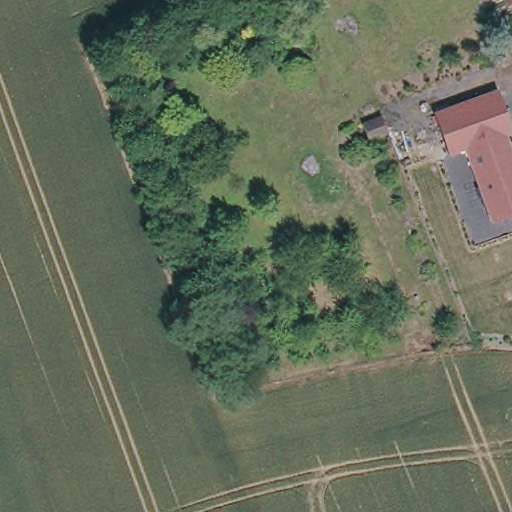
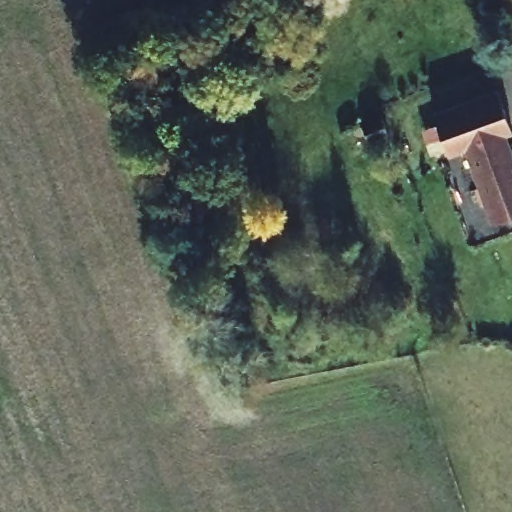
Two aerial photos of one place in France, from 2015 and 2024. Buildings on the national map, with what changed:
unchanged [(512,131),(512,137),(506,139),(512,157),(512,221),(495,227),(468,153),(450,160),(436,120),(499,97),(512,131)]
unchanged [(369,154),(361,137),(385,128),(392,145),(369,154)]

